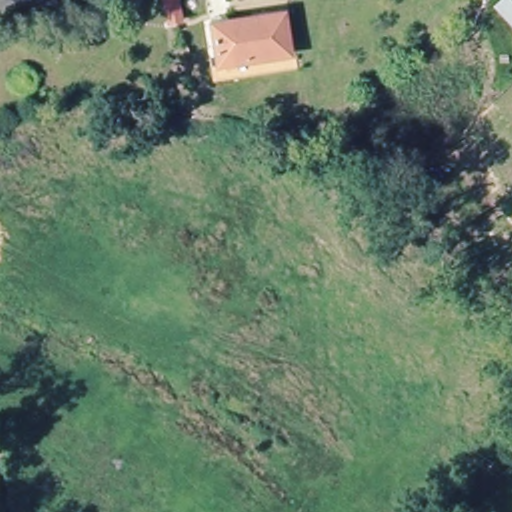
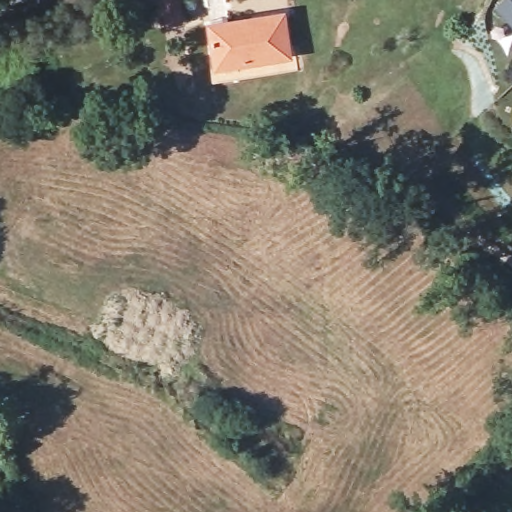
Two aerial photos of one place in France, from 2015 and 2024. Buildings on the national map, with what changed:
unchanged [(169,23),(165,0),(177,0),(181,21),(169,23)]
unchanged [(503,0),(512,0),(512,24),(497,5),(503,0)]
unchanged [(102,5),(104,21),(74,26),(72,10),(102,5)]
unchanged [(212,31),(211,25),(228,23),(229,29),(284,20),(290,61),(218,72),(212,31)]

